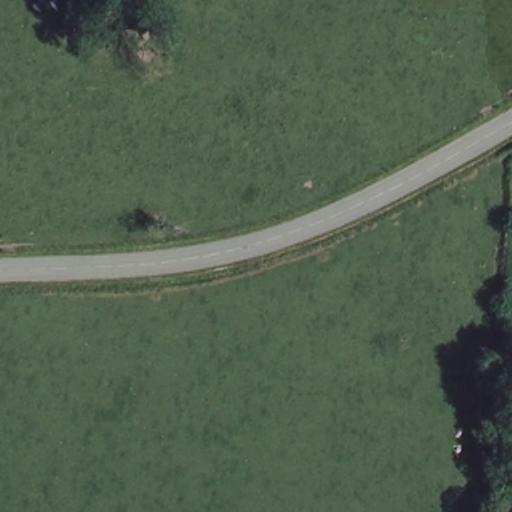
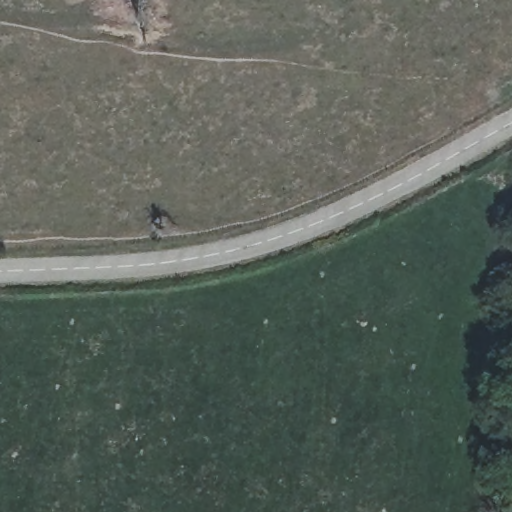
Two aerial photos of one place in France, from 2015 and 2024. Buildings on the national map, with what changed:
[]

